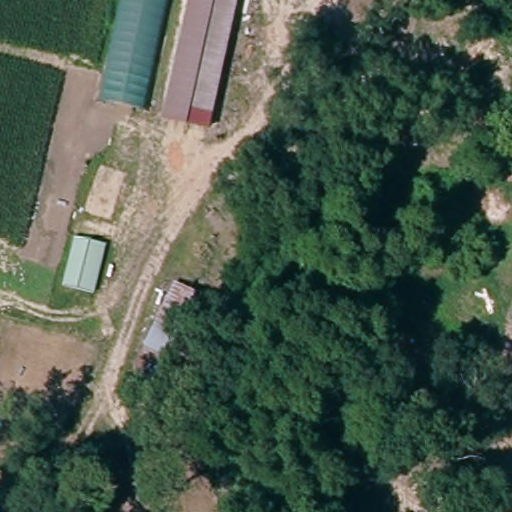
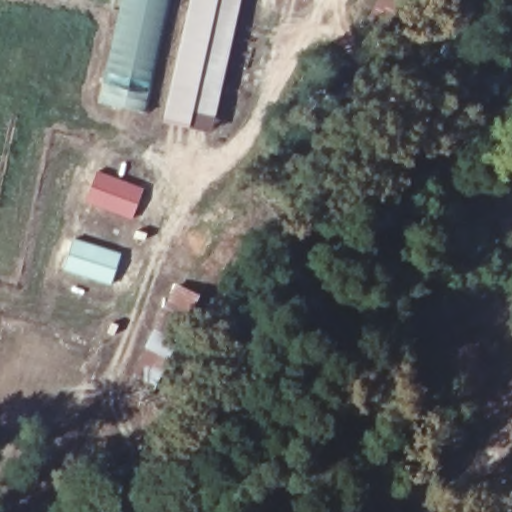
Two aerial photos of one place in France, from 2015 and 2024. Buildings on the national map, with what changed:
unchanged [(101,105),(123,0),(174,0),(148,116),(101,105)]
unchanged [(240,0),(212,125),(161,116),(188,0),(240,0)]
new [(141,190),(131,222),(83,206),(94,174),(141,190)]
unchanged [(105,245),(94,294),(61,286),(71,238),(105,245)]
unchanged [(198,293),(168,356),(145,344),(177,281),(198,293)]

